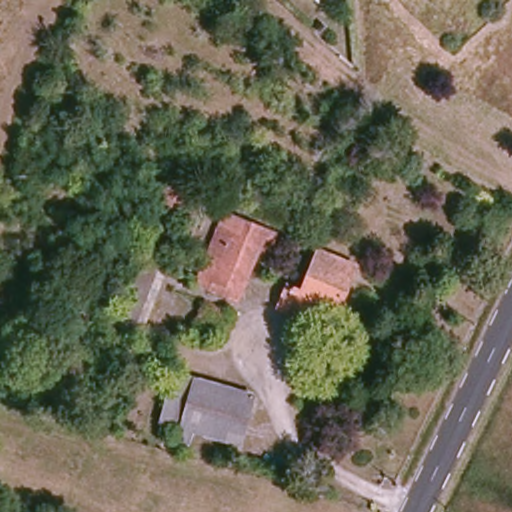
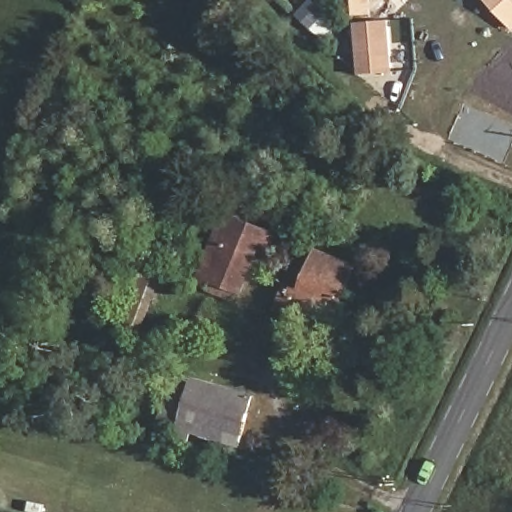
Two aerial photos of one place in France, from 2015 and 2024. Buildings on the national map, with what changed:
new [(394,73),(359,75),(355,23),(390,20),(394,73)]
unchanged [(164,174),(201,186),(195,205),(205,209),(190,245),(171,238),(179,215),(158,209),(164,174)]
unchanged [(263,231),(239,292),(207,278),(232,219),(263,231)]
unchanged [(316,304),(312,313),(290,306),(293,292),(303,294),(320,250),(355,263),(337,312),(316,304)]
unchanged [(109,322),(132,260),(165,275),(142,332),(109,322)]
unchanged [(203,305),(222,313),(211,335),(192,329),(203,305)]
unchanged [(127,362),(134,337),(165,347),(158,370),(127,362)]
unchanged [(187,425),(163,418),(177,373),(256,400),(240,443),(195,428),(191,442),(184,440),(187,425)]

